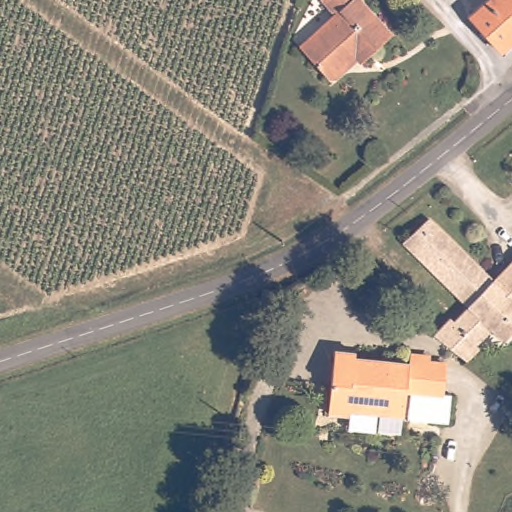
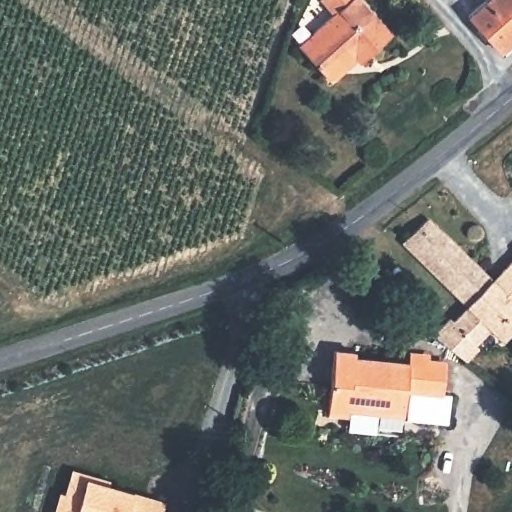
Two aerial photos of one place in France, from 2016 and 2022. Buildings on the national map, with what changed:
unchanged [(391,33),(358,62),(350,52),(345,55),(343,67),(327,78),(296,45),(332,13),(320,0),(360,0),(391,33)]
unchanged [(502,48),(469,10),(481,0),(512,0),(512,40),(502,48)]
unchanged [(433,342),(430,340),(448,321),(452,325),(466,309),(397,245),(424,220),(451,245),(495,287),(505,278),(501,275),(512,264),(512,338),(505,345),(493,335),(491,332),(475,350),(478,353),(470,361),(465,368),(457,362),(433,342)]
unchanged [(354,345),(412,351),(406,421),(350,415),(351,406),(328,403),(334,338),(355,340),(354,345)]
unchanged [(431,353),(430,361),(445,363),(443,396),(453,398),(450,424),(406,421),(412,351),(431,353)]
new [(64,492),(71,468),(112,479),(111,485),(136,491),(135,493),(166,501),(163,512),(53,512),(59,491),(64,492)]

